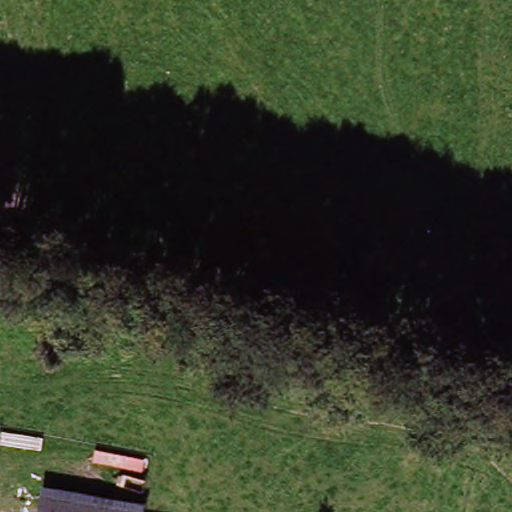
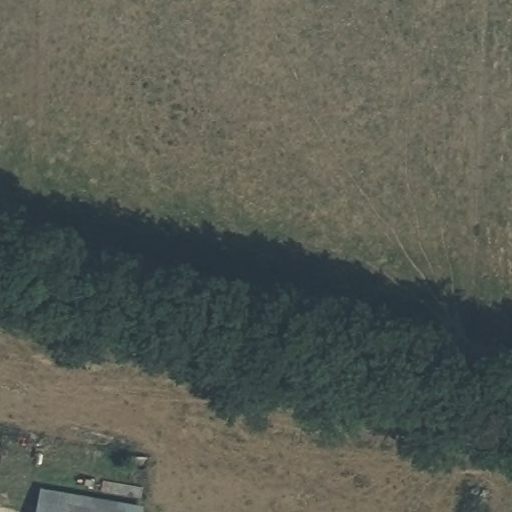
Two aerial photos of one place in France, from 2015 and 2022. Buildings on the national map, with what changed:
unchanged [(141,504),(141,512),(32,512),(38,485),(141,504)]

